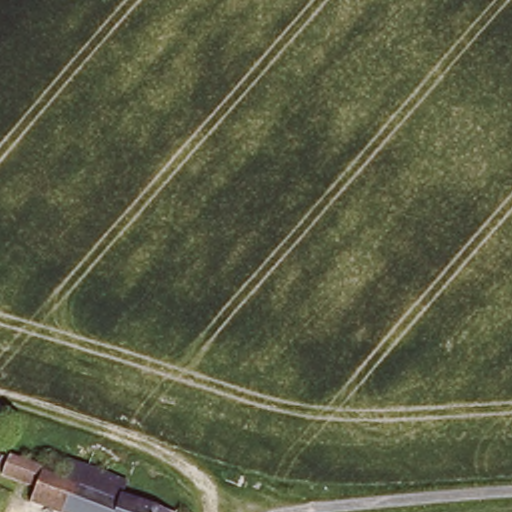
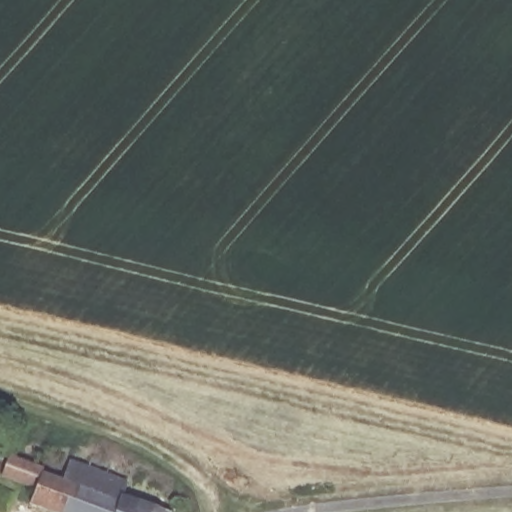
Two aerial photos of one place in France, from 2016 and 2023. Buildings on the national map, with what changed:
unchanged [(30,507),(36,488),(0,477),(0,455),(42,468),(41,472),(63,480),(70,460),(124,477),(121,489),(177,507),(175,512),(46,512),(30,507)]

